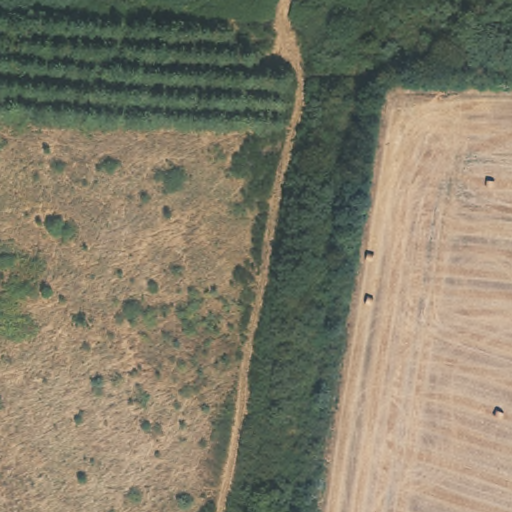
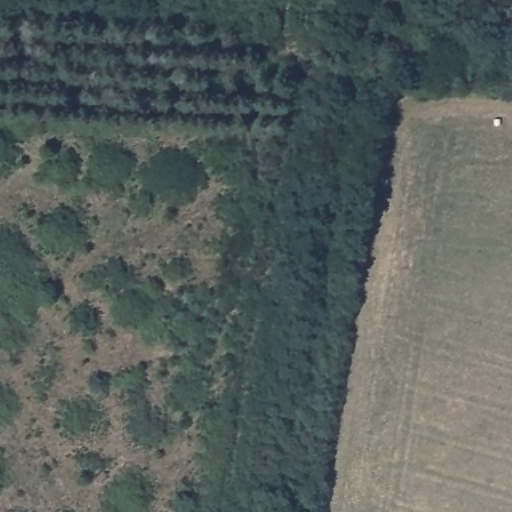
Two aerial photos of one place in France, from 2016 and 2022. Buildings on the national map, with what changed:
[]

